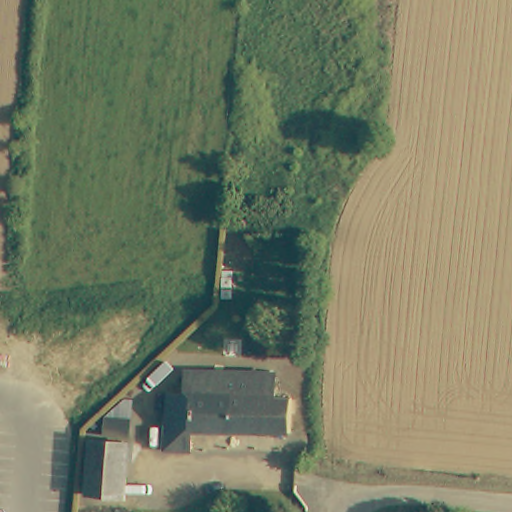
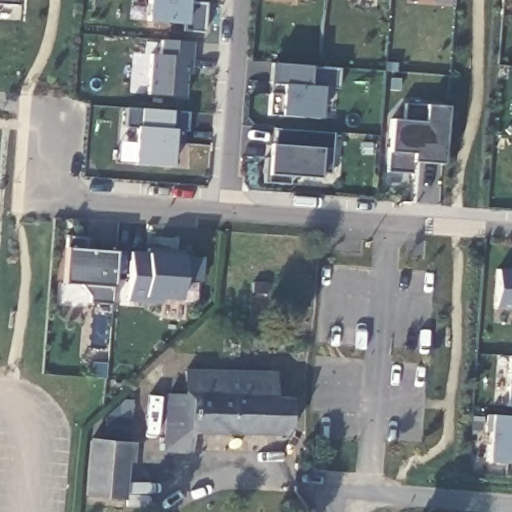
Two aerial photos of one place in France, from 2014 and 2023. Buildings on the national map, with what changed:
new [(0,0),(15,0),(15,4),(0,3),(0,0)]
new [(146,21),(148,0),(187,0),(185,24),(146,21)]
new [(191,74),(186,74),(185,97),(149,94),(150,54),(160,54),(160,39),(194,42),(191,74)]
new [(337,88),(322,88),(320,118),(280,115),(269,114),(272,63),(339,69),(337,88)]
new [(387,171),(390,152),(391,119),(405,120),(406,103),(425,104),(447,106),(443,164),(415,162),(412,173),(387,171)]
new [(175,129),(171,166),(135,163),(137,127),(125,126),(126,107),(141,109),(171,111),(188,112),(186,129),(175,129)]
new [(331,172),(320,172),(319,178),(293,176),(290,184),(264,182),(265,159),(270,160),(270,144),(276,144),(276,128),(333,132),(331,172)]
new [(90,303),(90,296),(83,285),(64,283),(65,248),(70,248),(68,236),(87,236),(90,249),(117,251),(115,287),(112,304),(90,303)]
new [(127,300),(131,251),(147,252),(183,255),(204,257),(202,281),(180,279),(180,299),(162,298),(161,302),(127,300)]
new [(495,308),(497,268),(512,269),(512,310),(495,308)]
new [(512,356),(512,406),(504,405),(506,371),(510,372),(510,356),(512,356)]
unchanged [(276,370),(277,394),(291,395),(290,431),(194,428),(192,447),(169,446),(171,390),(187,391),(189,367),(209,368),(276,370)]
unchanged [(84,496),(89,438),(106,440),(105,416),(124,399),(132,399),(130,442),(135,442),(134,462),(129,462),(125,499),(84,496)]
new [(487,462),(490,414),(512,416),(512,464),(487,462)]

